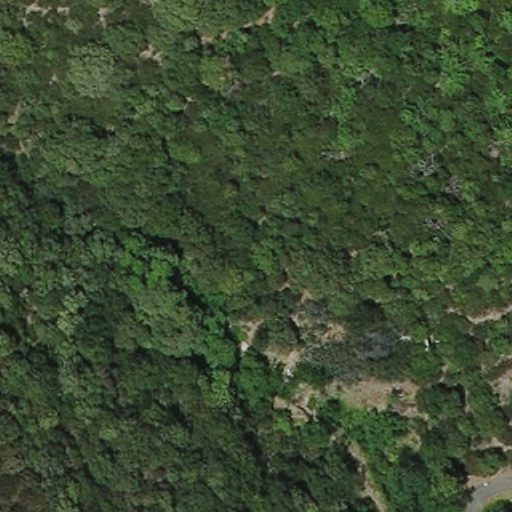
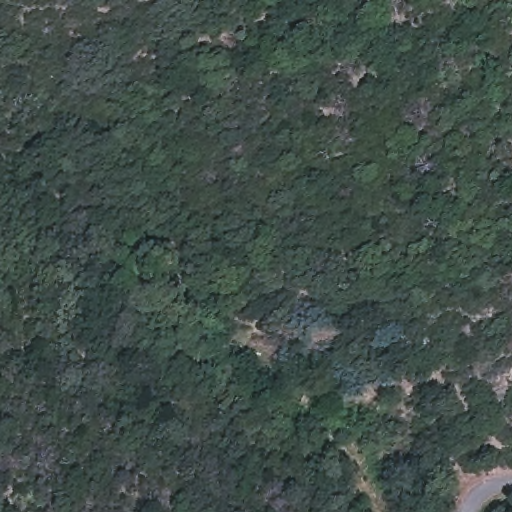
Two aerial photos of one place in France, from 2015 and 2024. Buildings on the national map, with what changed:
unchanged [(435,348),(407,350),(403,332),(431,330),(435,348)]

